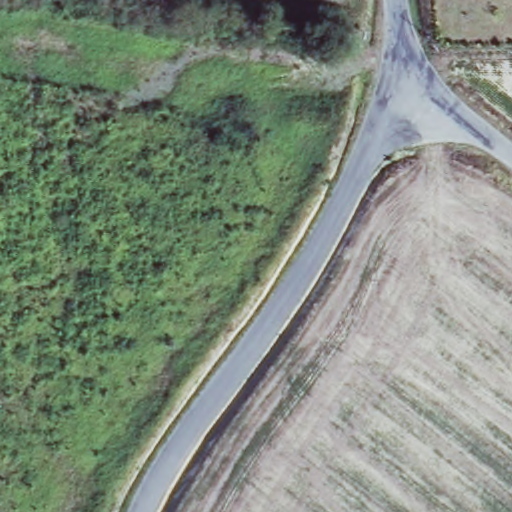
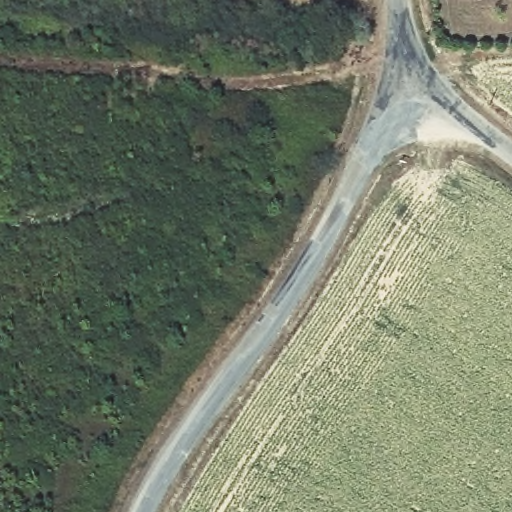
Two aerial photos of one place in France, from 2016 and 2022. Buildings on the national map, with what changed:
[]

